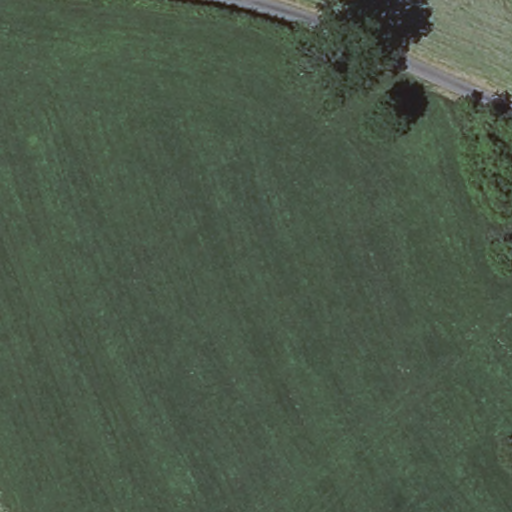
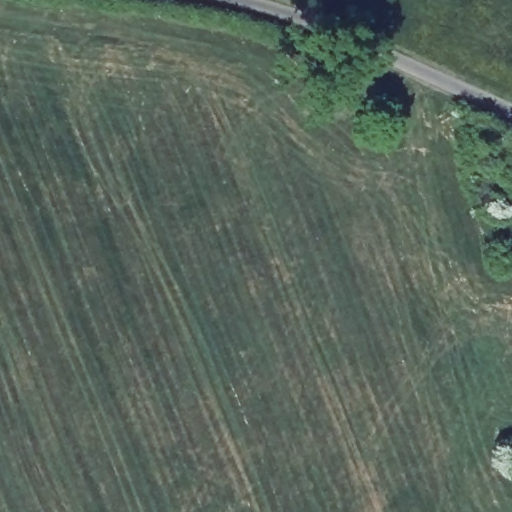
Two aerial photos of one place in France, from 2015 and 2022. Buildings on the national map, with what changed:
[]

